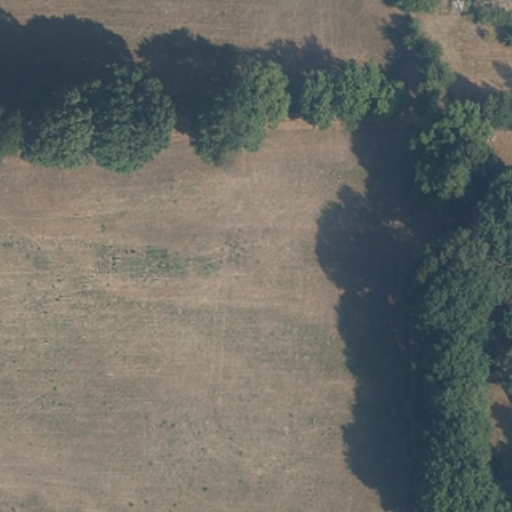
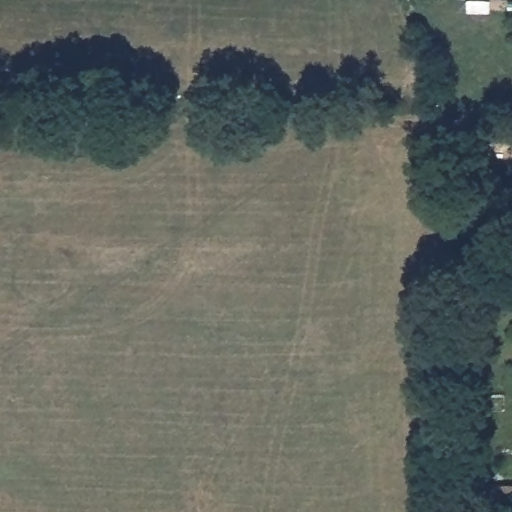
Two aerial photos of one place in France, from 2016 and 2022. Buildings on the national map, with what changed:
unchanged [(512,484),(512,504),(485,506),(485,486),(512,484)]

